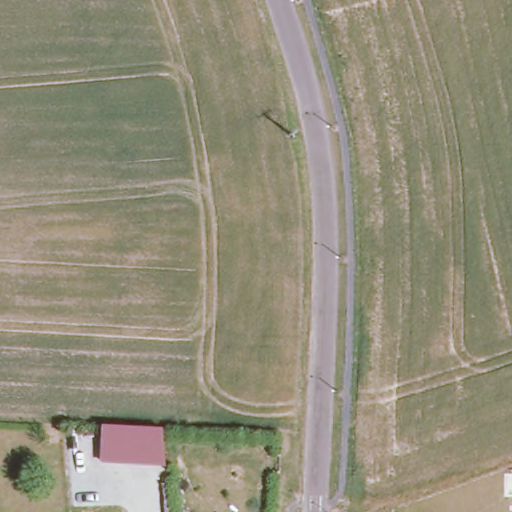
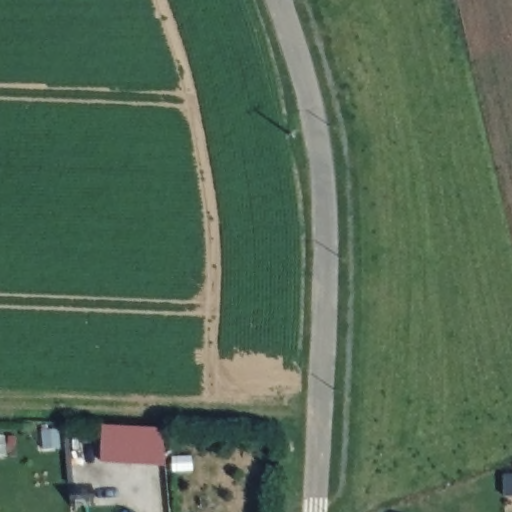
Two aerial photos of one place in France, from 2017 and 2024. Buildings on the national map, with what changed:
unchanged [(165,425),(162,464),(100,461),(101,422),(165,425)]

